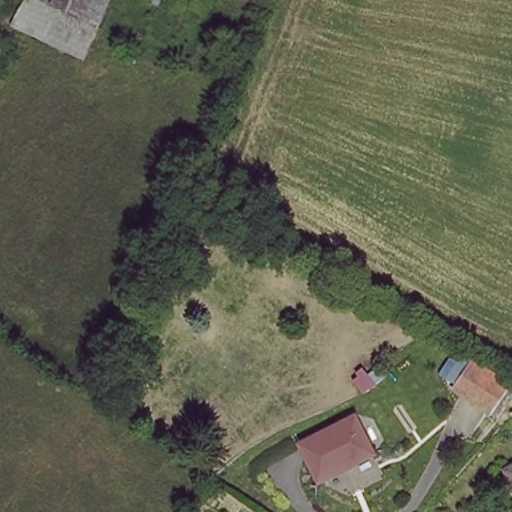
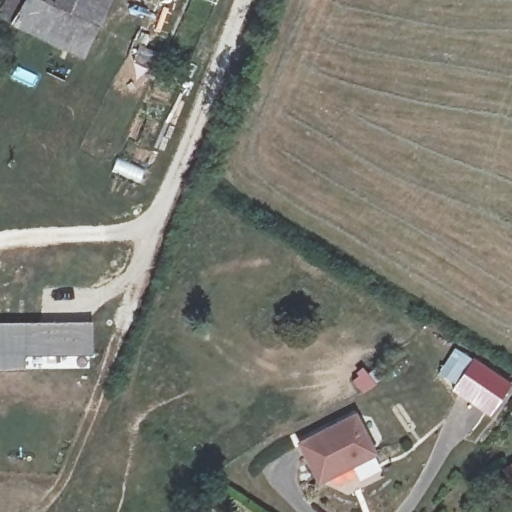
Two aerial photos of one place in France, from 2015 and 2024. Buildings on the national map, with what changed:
unchanged [(49,0),(97,25),(83,54),(14,20),(27,0),(49,0)]
unchanged [(49,0),(109,0),(97,25),(49,0)]
new [(23,356),(24,371),(0,371),(0,323),(90,322),(90,357),(23,356)]
unchanged [(485,417),(450,395),(465,364),(502,386),(485,417)]
unchanged [(376,457),(351,469),(348,463),(319,477),(305,446),(359,419),(376,457)]
unchanged [(512,465),(512,486),(505,469),(512,465)]

